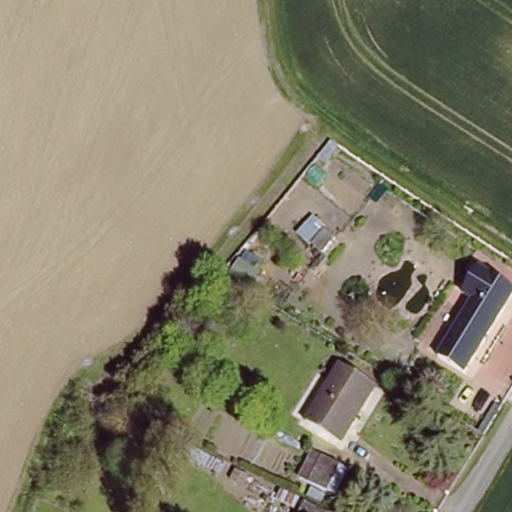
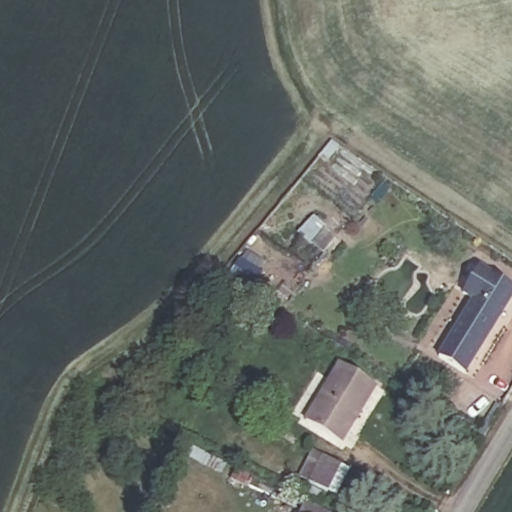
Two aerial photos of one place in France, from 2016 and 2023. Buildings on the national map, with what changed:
unchanged [(321,231),(331,239),(318,254),(308,246),(321,231)]
unchanged [(512,299),(463,375),(436,357),(469,302),(459,294),(476,266),(512,285),(512,299)]
unchanged [(228,296),(214,288),(222,275),(236,283),(228,296)]
unchanged [(309,420),(340,362),(376,382),(344,440),(309,420)]
unchanged [(301,473),(315,448),(351,467),(338,492),(301,473)]

